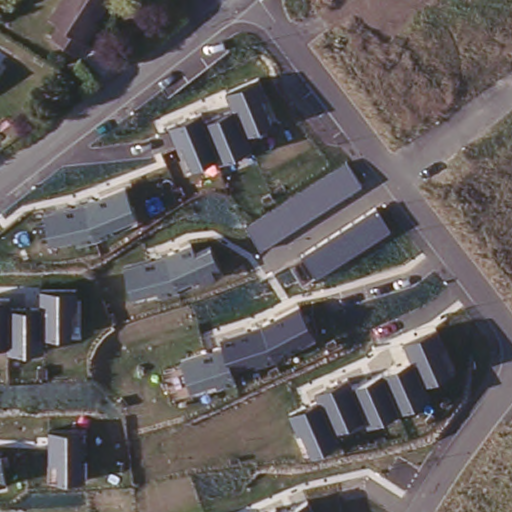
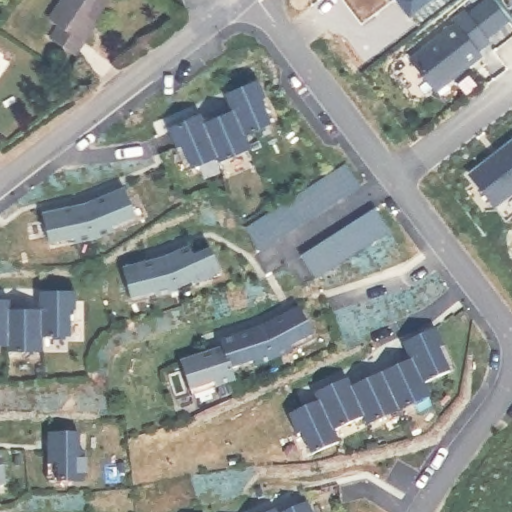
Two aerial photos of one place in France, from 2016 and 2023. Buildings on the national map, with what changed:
unchanged [(82,35),(73,48),(47,31),(55,19),(46,14),(55,0),(99,0),(89,15),(94,17),(82,35)]
new [(464,4),(487,30),(477,41),(486,52),(437,91),(406,54),(464,4)]
unchanged [(204,109),(208,118),(233,107),(226,91),(261,77),(269,95),(262,97),(272,122),(250,132),(255,146),(219,162),(217,156),(189,169),(170,124),(204,109)]
new [(512,187),(493,200),(469,171),(512,139),(512,187)]
unchanged [(363,184),(261,250),(246,226),(348,160),(363,184)]
unchanged [(138,217),(114,226),(115,230),(95,238),(76,241),(75,238),(49,244),(41,210),(87,200),(124,184),(138,217)]
unchanged [(393,228),(316,276),(301,254),(377,205),(393,228)]
unchanged [(224,265),(215,270),(218,274),(200,282),(196,277),(177,286),(179,290),(160,295),(156,288),(129,295),(122,264),(168,252),(191,243),(195,251),(211,245),(224,265)]
unchanged [(14,298),(14,305),(40,306),(40,288),(76,288),(76,312),(72,312),(71,337),(44,337),(45,350),(6,351),(6,347),(0,347),(0,298),(14,298)]
unchanged [(317,337),(274,360),(235,372),(236,380),(214,386),(213,383),(190,390),(180,356),(221,345),(218,336),(261,324),(301,302),(317,337)]
unchanged [(448,344),(440,348),(450,373),(428,383),(433,393),(368,425),(363,417),(336,428),(343,442),(313,455),(302,431),(298,432),(289,413),(318,400),(314,391),(350,375),(354,383),(411,357),(403,341),(440,326),(448,344)]
unchanged [(81,427),(82,458),(88,458),(87,480),(47,482),(46,430),(81,427)]
unchanged [(2,458),(8,482),(0,485),(0,459),(2,458)]
unchanged [(319,512),(282,512),(311,496),(319,512)]
unchanged [(281,512),(263,512),(278,505),(281,512)]

